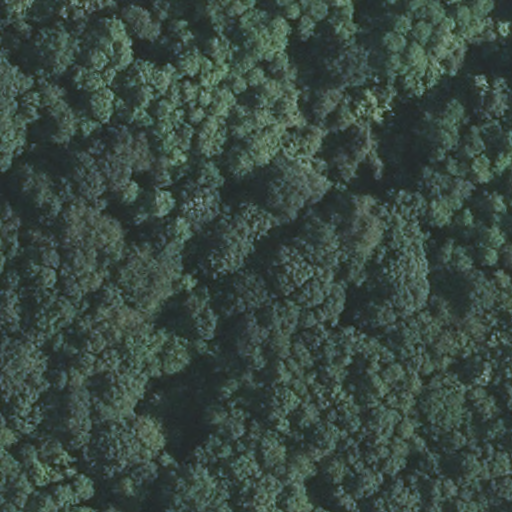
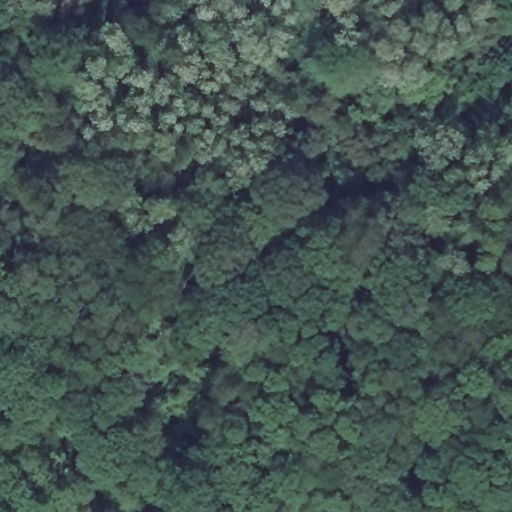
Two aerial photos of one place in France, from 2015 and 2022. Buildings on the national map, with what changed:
unchanged [(512,181),(512,192),(510,191),(512,181)]

